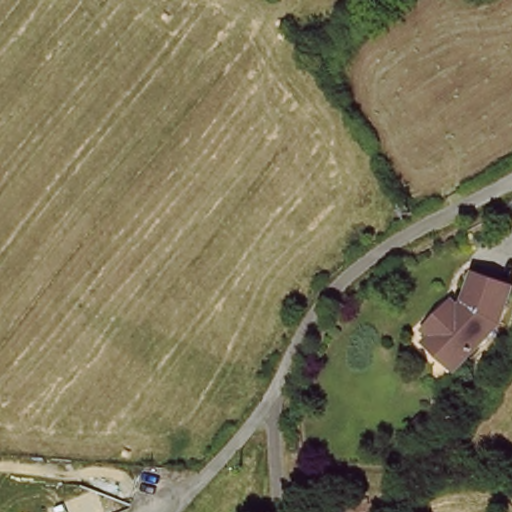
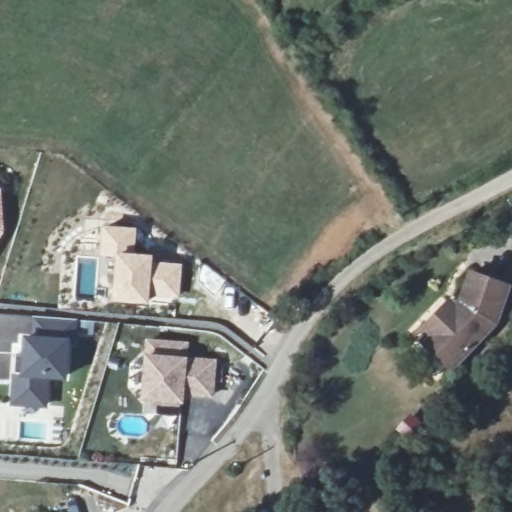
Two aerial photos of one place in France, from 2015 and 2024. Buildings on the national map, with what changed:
new [(6,232),(0,242),(0,188),(4,187),(6,232)]
new [(140,227),(138,252),(157,253),(156,261),(185,263),(183,300),(153,296),(153,305),(115,301),(118,257),(103,256),(104,225),(140,227)]
unchanged [(429,334),(422,327),(450,300),(456,306),(461,310),(466,305),(461,301),(472,272),(509,285),(495,322),(457,361),(451,367),(423,340),(429,334)]
new [(81,320),(80,348),(73,348),(70,404),(50,405),(49,410),(12,408),(14,375),(24,375),(26,333),(33,334),(34,317),(81,320)]
new [(191,341),(190,357),(219,360),(217,400),(187,397),(187,404),(142,401),(147,339),(191,341)]

